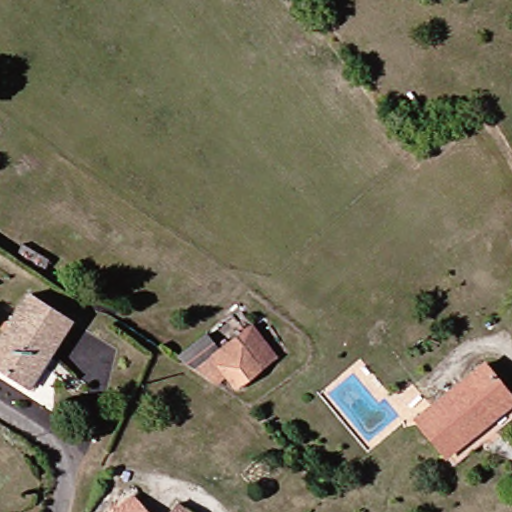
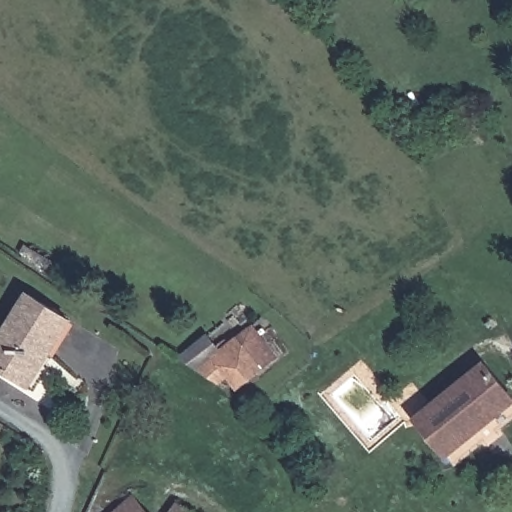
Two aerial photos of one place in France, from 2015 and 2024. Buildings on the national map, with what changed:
unchanged [(47,269),(19,252),(25,243),(52,260),(47,269)]
unchanged [(20,387),(0,375),(0,337),(25,299),(66,325),(44,359),(24,390),(20,387)]
unchanged [(204,339),(216,355),(249,329),(274,361),(232,394),(222,382),(214,389),(174,363),(204,339)]
unchanged [(417,419),(485,363),(512,397),(512,402),(447,455),(417,419)]
unchanged [(145,512),(118,512),(132,500),(145,512)]
unchanged [(190,512),(171,512),(179,502),(190,512)]

